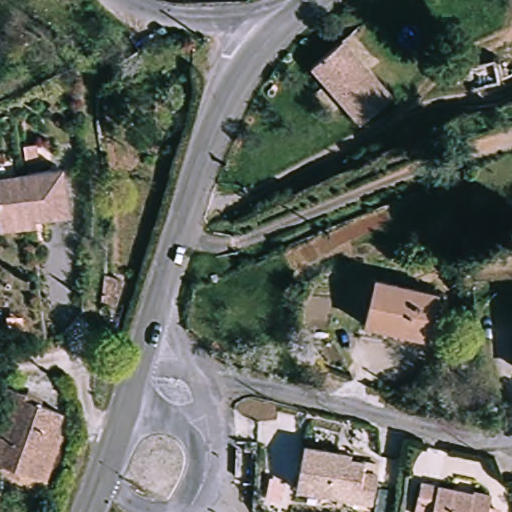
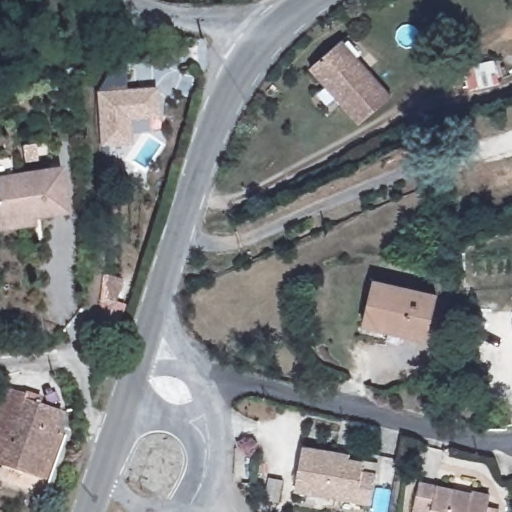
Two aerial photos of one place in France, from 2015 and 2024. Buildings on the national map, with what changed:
unchanged [(359,127),(309,69),(345,37),(393,97),(359,127)]
new [(100,92),(111,70),(126,69),(127,90),(158,88),(160,119),(131,121),(135,144),(102,147),(97,92),(100,92)]
unchanged [(0,228),(0,174),(57,165),(64,211),(31,216),(32,223),(0,228)]
unchanged [(103,273),(126,277),(123,298),(102,296),(103,273)]
unchanged [(361,325),(376,280),(432,295),(421,341),(361,325)]
unchanged [(452,370),(449,348),(466,346),(466,348),(467,368),(452,370)]
unchanged [(49,477),(39,475),(0,463),(0,461),(21,397),(60,410),(55,427),(63,430),(49,477)]
unchanged [(369,503),(354,501),(291,490),(299,446),(334,452),(333,457),(361,462),(359,471),(374,473),(369,503)]
unchanged [(471,492),(471,490),(489,492),(486,506),(499,507),(498,512),(413,512),(418,483),(471,492)]

